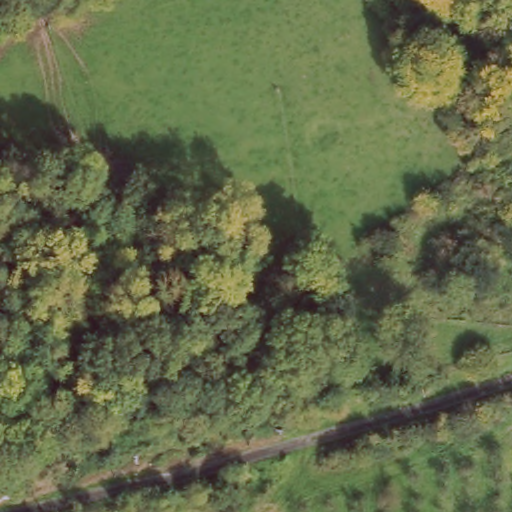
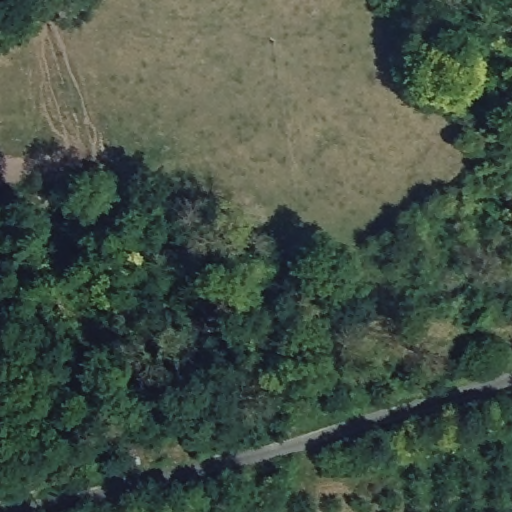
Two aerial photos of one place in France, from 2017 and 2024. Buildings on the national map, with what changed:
unchanged [(68,437),(65,417),(77,416),(79,436),(68,437)]
unchanged [(22,475),(28,500),(0,507),(0,481),(22,475)]

